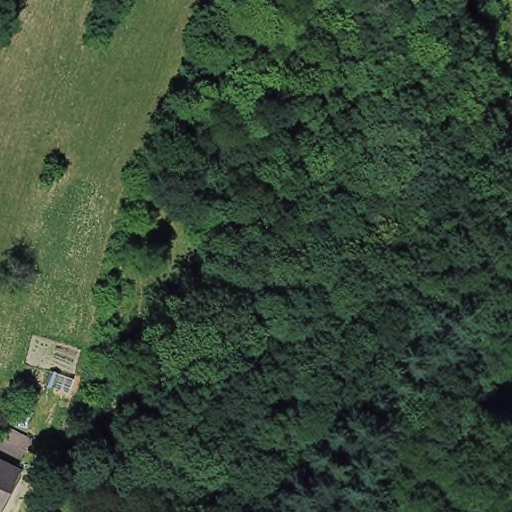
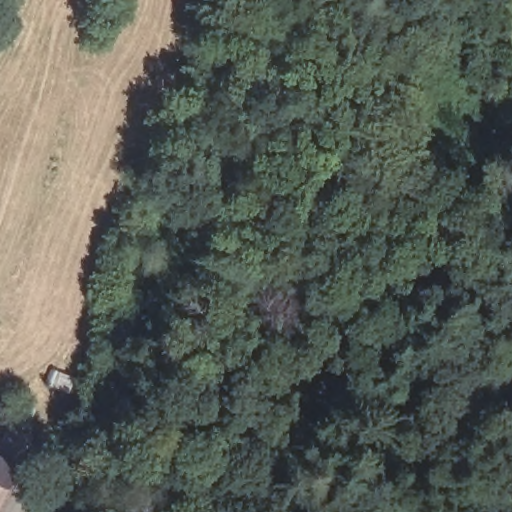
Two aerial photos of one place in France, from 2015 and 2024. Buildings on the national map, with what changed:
unchanged [(0,462),(11,468),(0,490),(0,462)]

